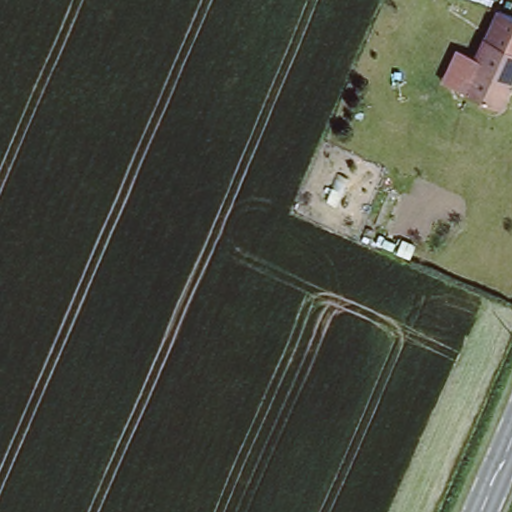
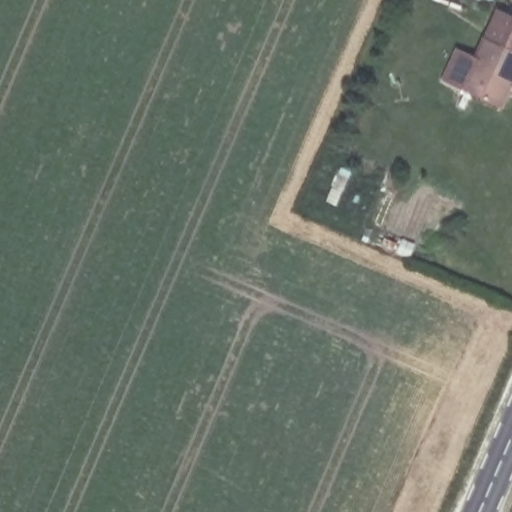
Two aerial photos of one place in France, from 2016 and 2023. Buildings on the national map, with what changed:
unchanged [(481,35),(484,36),(497,7),(512,14),(512,77),(498,107),(457,87),(481,35)]

